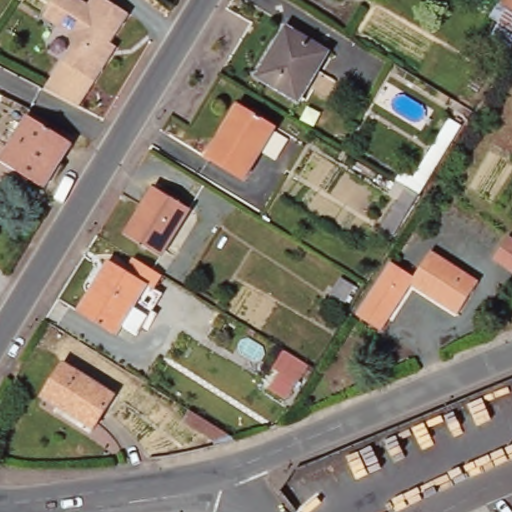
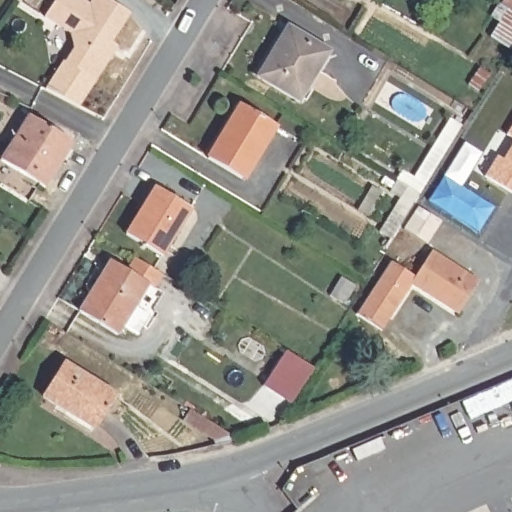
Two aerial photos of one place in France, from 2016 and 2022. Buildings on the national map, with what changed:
unchanged [(71,50),(70,35),(43,19),(55,0),(83,0),(89,3),(92,0),(104,0),(128,14),(111,43),(116,47),(79,106),(47,87),(71,50)]
unchanged [(491,0),(503,0),(500,5),(491,0)]
new [(512,0),(512,8),(502,2),(503,0),(512,0)]
unchanged [(291,21),(334,46),(303,98),(260,72),(291,21)]
unchanged [(239,100),(275,122),(244,175),(207,153),(239,100)]
unchanged [(72,138),(44,184),(0,157),(0,154),(27,111),(72,138)]
new [(509,134),(512,128),(512,136),(509,134)]
new [(487,175),(499,155),(505,159),(512,148),(512,191),(487,175)]
unchanged [(159,188),(195,209),(165,257),(130,235),(159,188)]
unchanged [(512,233),(512,263),(498,254),(512,233)]
unchanged [(395,257),(419,272),(436,247),(484,277),(463,309),(416,280),(386,326),(360,310),(395,257)]
unchanged [(148,315),(136,334),(120,324),(116,332),(77,307),(109,256),(126,267),(134,254),(161,270),(151,284),(163,291),(148,315)]
unchanged [(358,279),(347,298),(333,290),(344,271),(358,279)]
unchanged [(64,358),(116,390),(93,425),(41,393),(64,358)]
unchanged [(213,442),(182,420),(188,409),(229,434),(213,442)]

